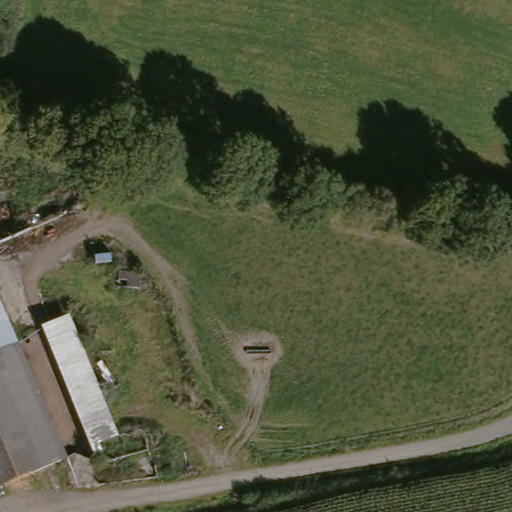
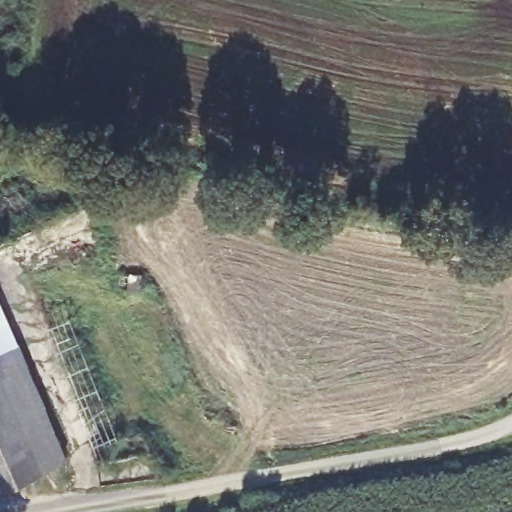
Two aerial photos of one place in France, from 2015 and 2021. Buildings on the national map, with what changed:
unchanged [(0,315),(14,348),(0,354),(0,315)]
unchanged [(87,447),(37,328),(59,315),(108,438),(87,447)]
unchanged [(54,466),(61,483),(41,493),(32,475),(0,488),(0,354),(14,348),(63,463),(54,466)]

